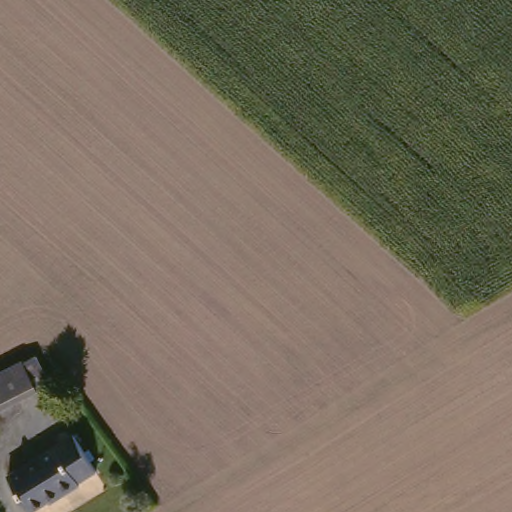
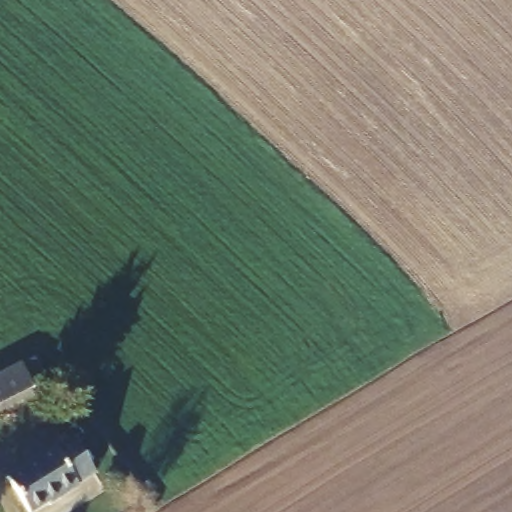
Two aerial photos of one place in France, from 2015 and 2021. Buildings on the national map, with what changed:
unchanged [(0,410),(0,374),(43,355),(56,383),(0,410)]
unchanged [(74,434),(98,468),(79,481),(81,485),(64,497),(61,494),(36,511),(11,477),(74,434)]

